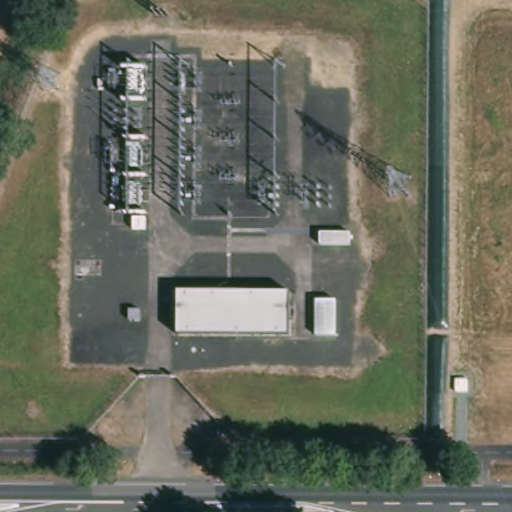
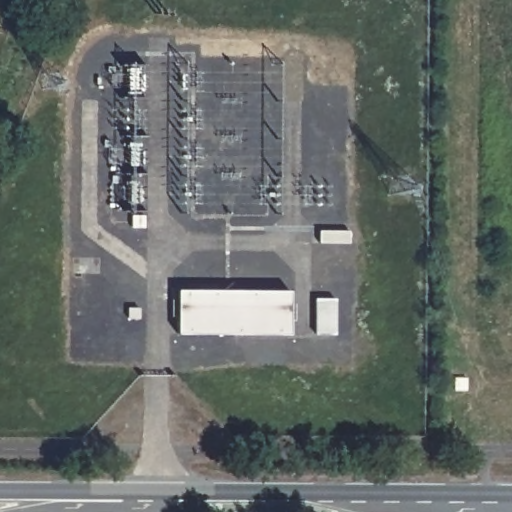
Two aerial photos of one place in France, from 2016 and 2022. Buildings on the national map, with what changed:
unchanged [(294,290),(293,334),(179,333),(179,290),(294,290)]
unchanged [(324,298),(344,298),(343,334),(324,334),(324,298)]

